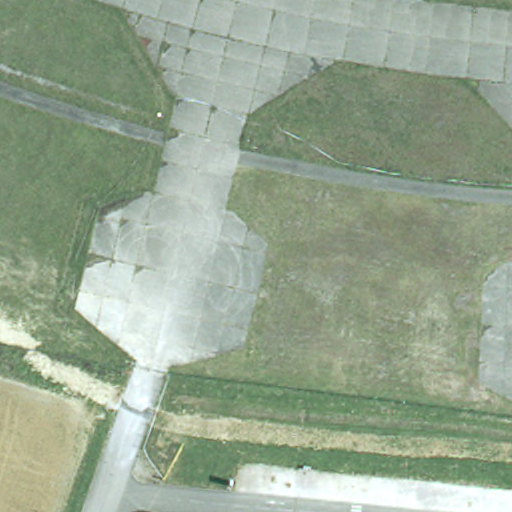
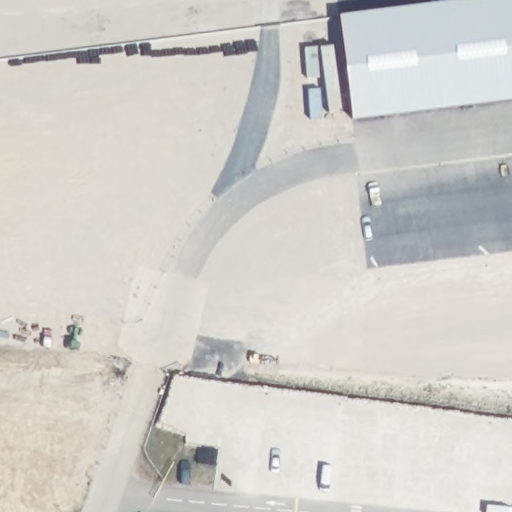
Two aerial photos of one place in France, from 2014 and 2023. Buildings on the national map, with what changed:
new [(512,0),(512,101),(350,121),(335,16),(459,0),(512,0)]

